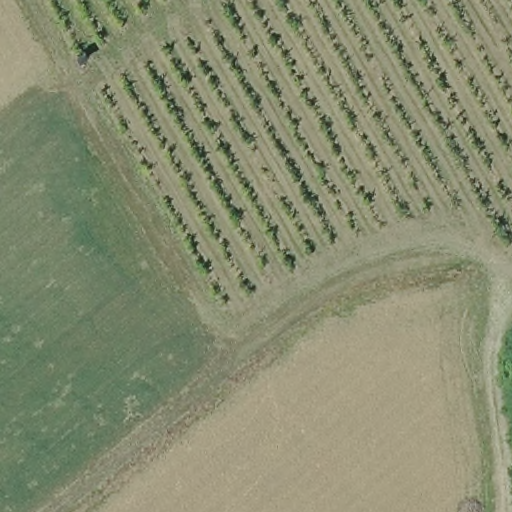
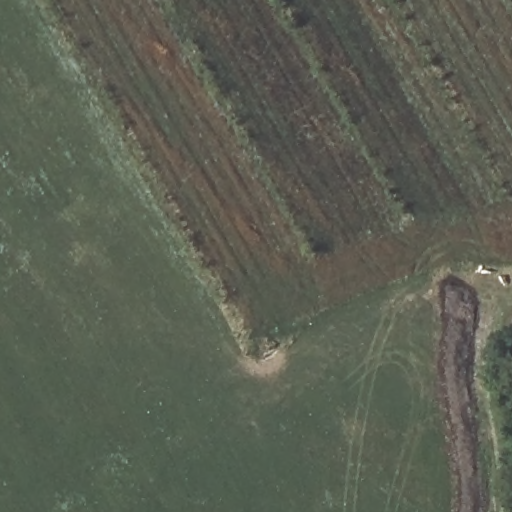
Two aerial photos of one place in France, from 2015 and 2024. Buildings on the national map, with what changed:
[]

